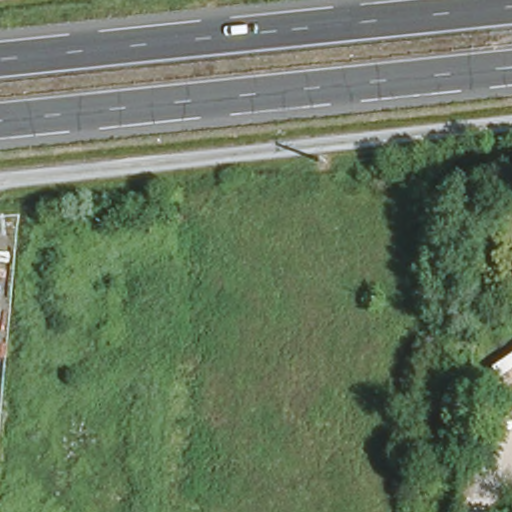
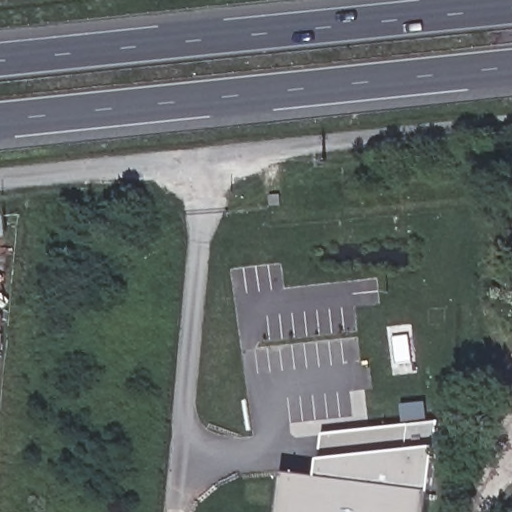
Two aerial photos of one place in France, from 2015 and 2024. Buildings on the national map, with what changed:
new [(317,473),(323,432),(441,419),(431,512),(278,512),(282,469),(317,473)]
unchanged [(512,507),(512,512),(484,512),(485,506),(512,507)]

